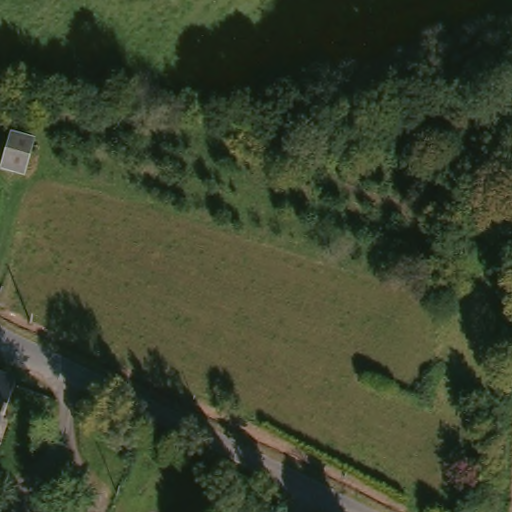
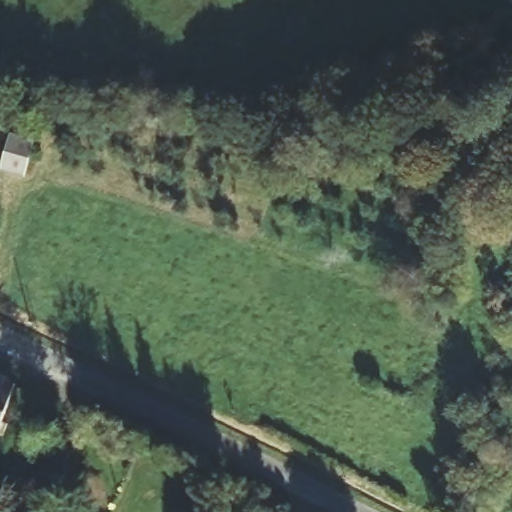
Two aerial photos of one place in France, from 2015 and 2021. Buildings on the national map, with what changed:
unchanged [(400,151),(396,123),(451,115),(454,144),(400,151)]
unchanged [(36,143),(26,177),(1,170),(11,136),(36,143)]
unchanged [(5,435),(0,434),(0,377),(21,385),(5,435)]

